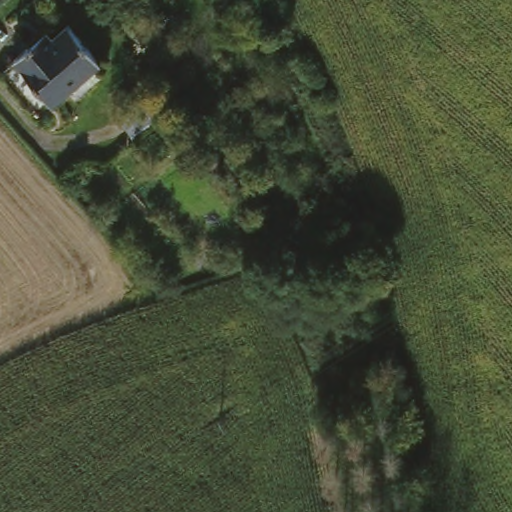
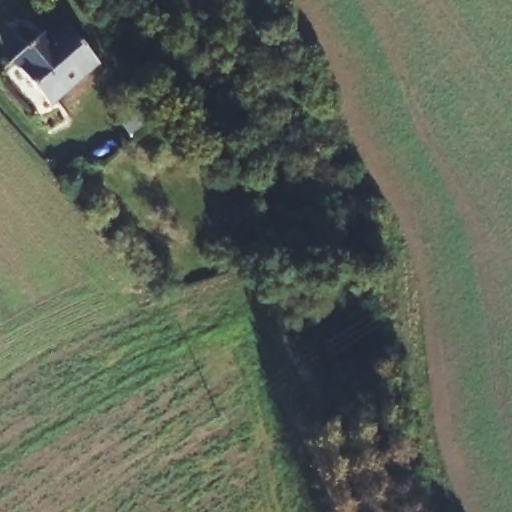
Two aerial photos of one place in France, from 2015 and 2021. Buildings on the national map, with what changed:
unchanged [(20,47),(57,24),(63,32),(79,20),(106,62),(54,97),(20,47)]
unchanged [(156,101),(165,118),(132,138),(122,120),(156,101)]

